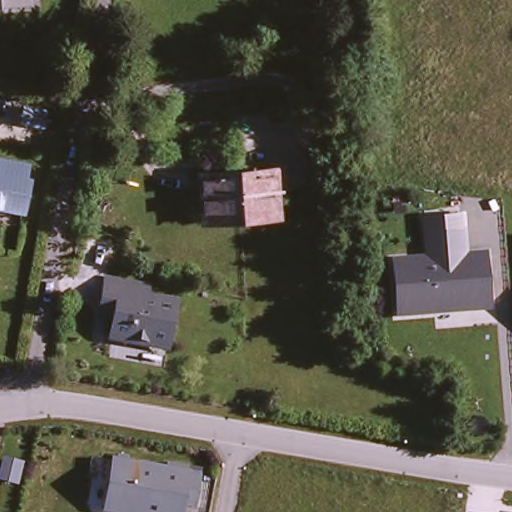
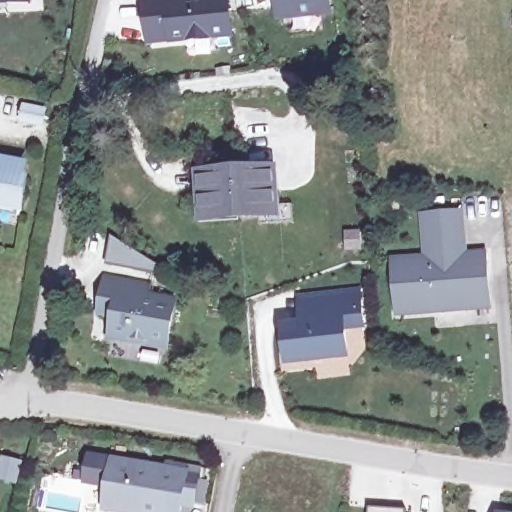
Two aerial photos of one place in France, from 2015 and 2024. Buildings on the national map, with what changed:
new [(166,0),(225,0),(229,32),(172,39),(171,31),(152,33),(148,2),(166,0)]
new [(332,11),(281,16),(279,0),(330,0),(332,11)]
unchanged [(45,112),(43,123),(22,120),(24,108),(45,112)]
unchanged [(25,178),(28,178),(21,215),(0,211),(0,159),(28,164),(25,178)]
unchanged [(243,171),(278,169),(281,209),(246,212),(243,171)]
unchanged [(211,215),(208,174),(243,171),(246,212),(211,215)]
unchanged [(393,314),(389,255),(420,253),(417,209),(462,205),(467,252),(485,249),(490,307),(393,314)]
new [(156,272),(136,269),(112,264),(117,236),(139,249),(158,261),(156,272)]
unchanged [(159,285),(157,294),(187,300),(178,345),(124,334),(128,316),(113,313),(116,298),(120,278),(159,285)]
new [(303,297),(314,296),(359,290),(363,322),(345,325),(348,352),(290,360),(286,325),(306,323),(303,297)]
unchanged [(184,472),(197,474),(193,503),(180,501),(178,512),(133,512),(105,507),(112,458),(185,469),(184,472)]
new [(371,512),(372,510),(406,512),(371,512)]

